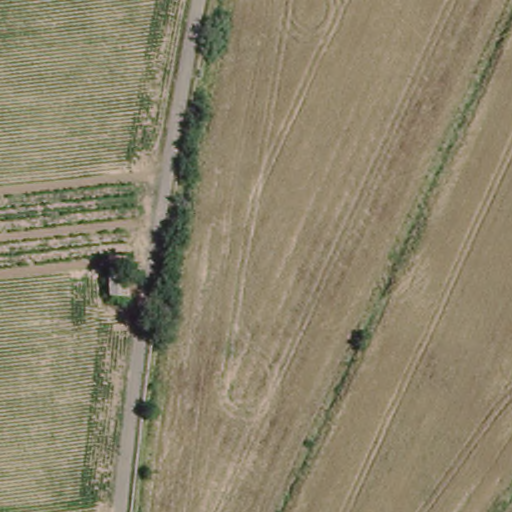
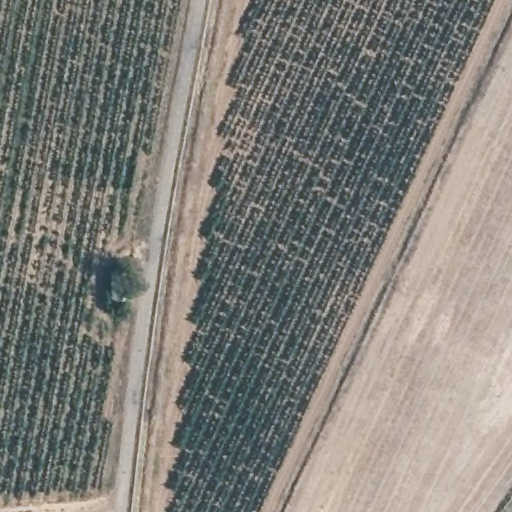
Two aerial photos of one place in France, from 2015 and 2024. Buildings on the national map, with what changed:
unchanged [(127,275),(130,302),(114,304),(110,276),(127,275)]

